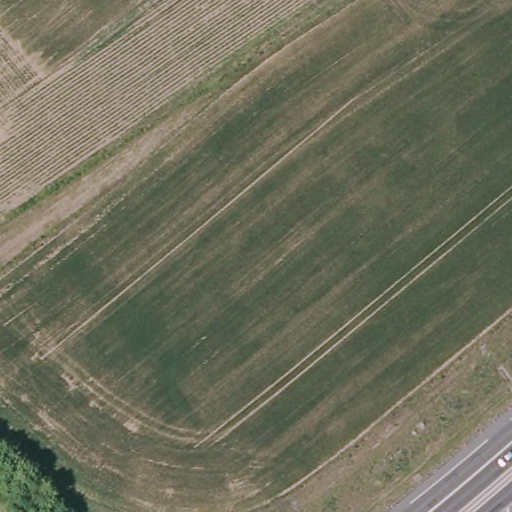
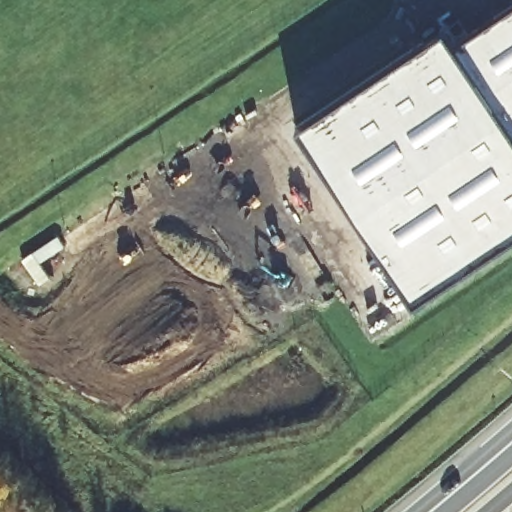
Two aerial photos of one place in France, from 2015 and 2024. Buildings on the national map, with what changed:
new [(444,31),(454,46),(512,6),(512,229),(409,296),(289,125),(444,31)]

